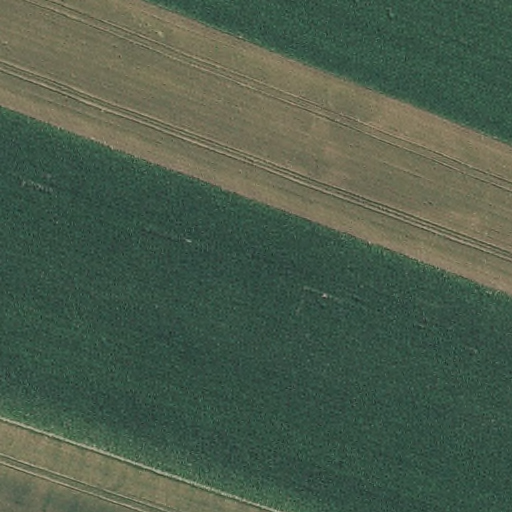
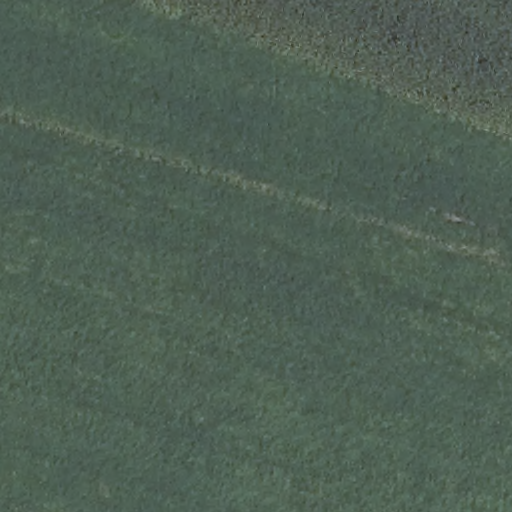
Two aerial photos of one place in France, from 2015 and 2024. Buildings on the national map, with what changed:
[]

